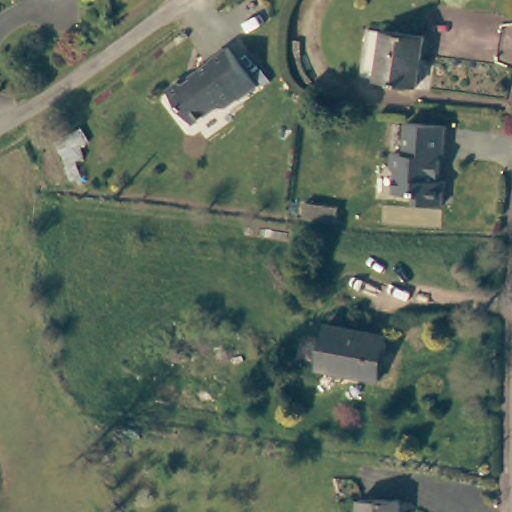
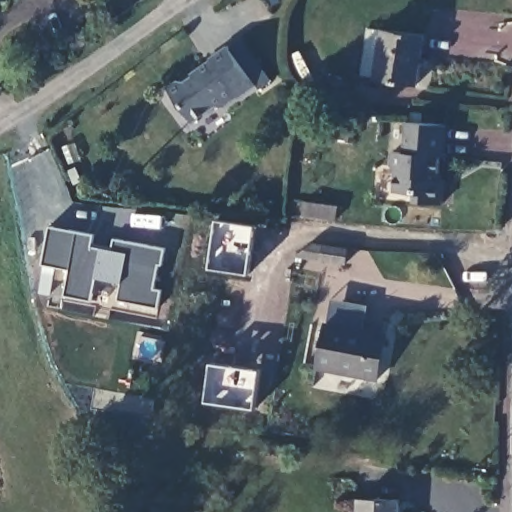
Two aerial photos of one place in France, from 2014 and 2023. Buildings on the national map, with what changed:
unchanged [(362,76),(369,26),(427,35),(420,85),(362,76)]
unchanged [(221,48),(223,51),(235,42),(264,84),(251,92),(235,105),(233,101),(215,115),(205,111),(185,126),(160,91),(170,85),(177,87),(207,66),(204,62),(221,48)]
unchanged [(396,156),(402,151),(403,125),(449,127),(447,159),(444,159),(443,182),(449,182),(447,206),(420,205),(420,196),(400,195),(400,175),(396,170),(396,156)]
unchanged [(341,205),(340,223),(320,220),(303,218),(305,201),(341,205)]
new [(160,267),(157,266),(152,289),(161,291),(157,309),(117,301),(121,283),(95,278),(90,302),(65,296),(70,271),(42,265),(50,227),(95,236),(93,247),(111,250),(115,240),(165,250),(160,267)]
unchanged [(323,323),(383,335),(375,379),(316,367),(323,323)]
unchanged [(355,498),(396,500),(396,512),(355,512),(355,498)]

